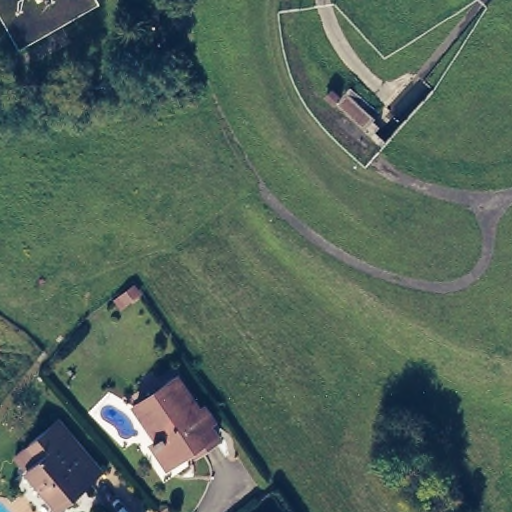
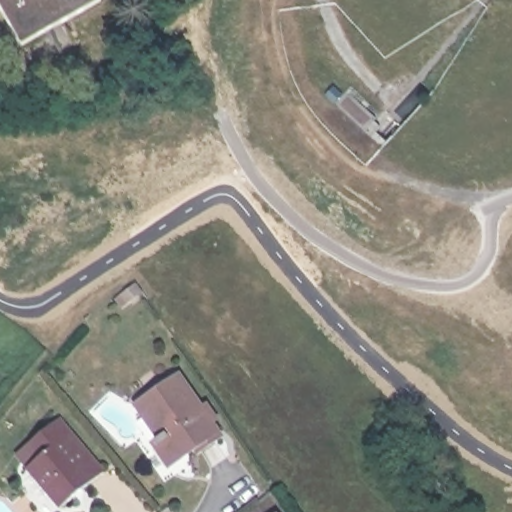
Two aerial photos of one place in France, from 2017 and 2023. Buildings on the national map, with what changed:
unchanged [(99,0),(100,1),(20,46),(0,11),(0,0),(99,0)]
unchanged [(162,445),(167,440),(142,403),(151,395),(179,375),(221,433),(203,446),(201,446),(192,452),(181,459),(175,463),(162,445)]
unchanged [(103,465),(61,500),(42,478),(49,471),(38,457),(45,451),(73,429),(103,465)]

